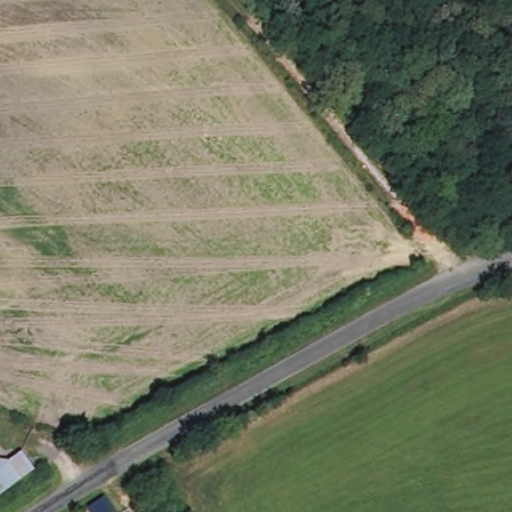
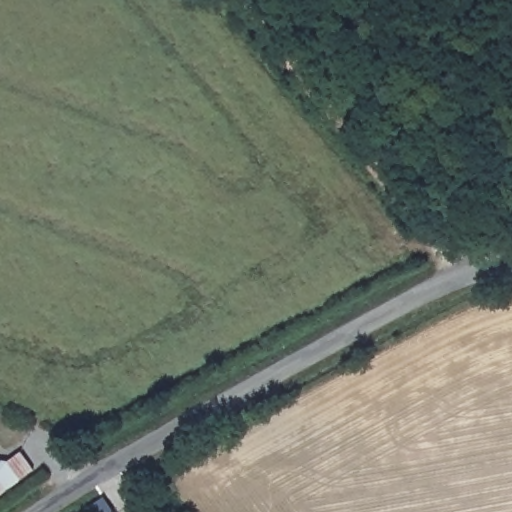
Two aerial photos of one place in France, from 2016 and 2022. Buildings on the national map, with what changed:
unchanged [(0,493),(0,467),(24,452),(37,471),(0,493)]

